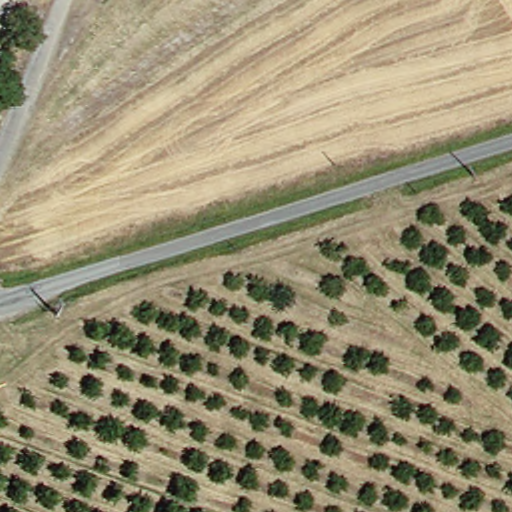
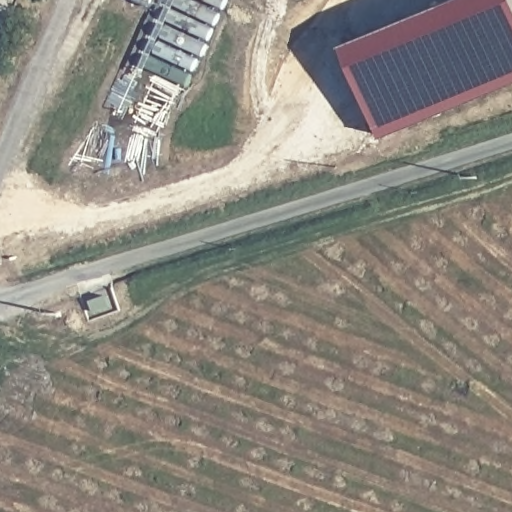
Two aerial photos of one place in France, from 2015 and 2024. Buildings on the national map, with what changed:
new [(512,80),(382,134),(340,42),(439,0),(512,0),(512,80)]

